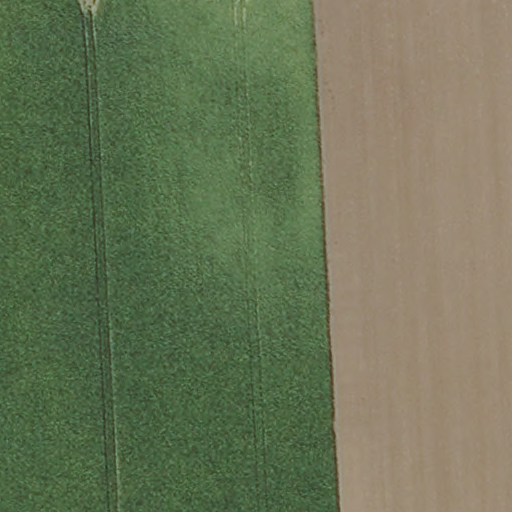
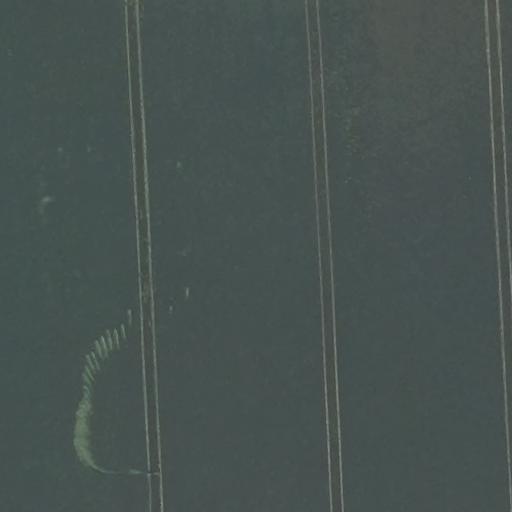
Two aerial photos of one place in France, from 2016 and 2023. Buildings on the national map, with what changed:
[]

